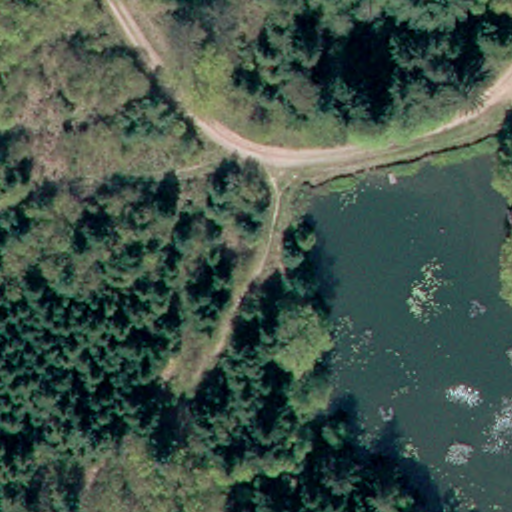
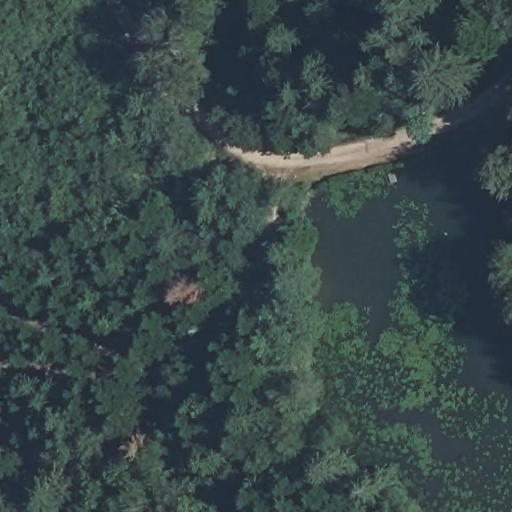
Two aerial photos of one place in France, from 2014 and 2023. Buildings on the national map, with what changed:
unchanged [(497,213),(512,209),(512,225),(499,228),(497,213)]

